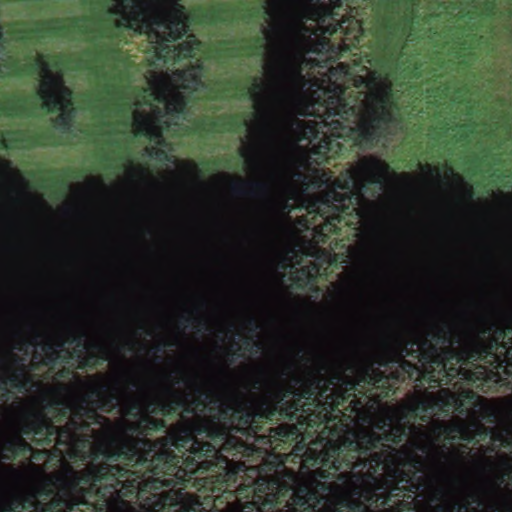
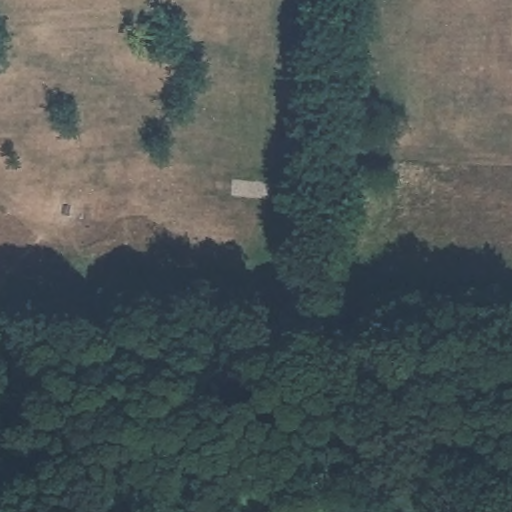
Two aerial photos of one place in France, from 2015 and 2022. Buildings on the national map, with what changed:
[]

